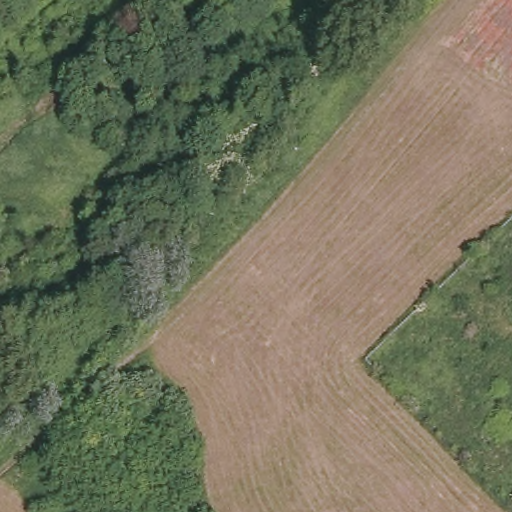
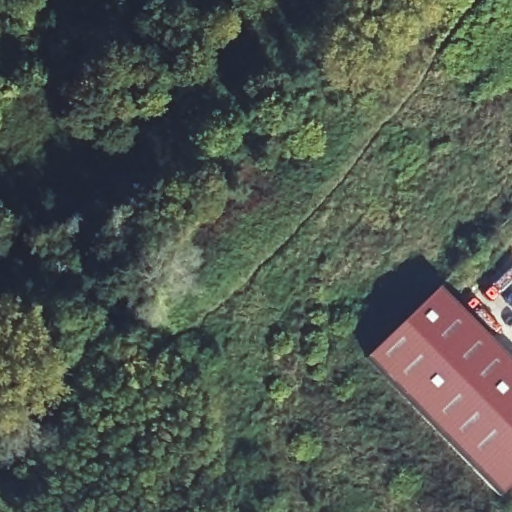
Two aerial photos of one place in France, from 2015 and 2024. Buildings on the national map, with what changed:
new [(512,363),(512,483),(501,495),(366,355),(436,287),(512,363)]

